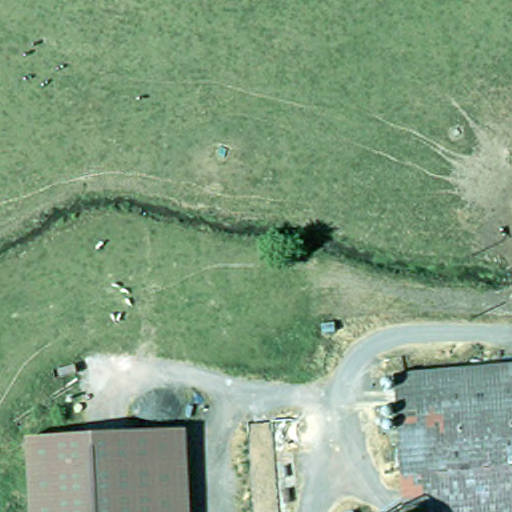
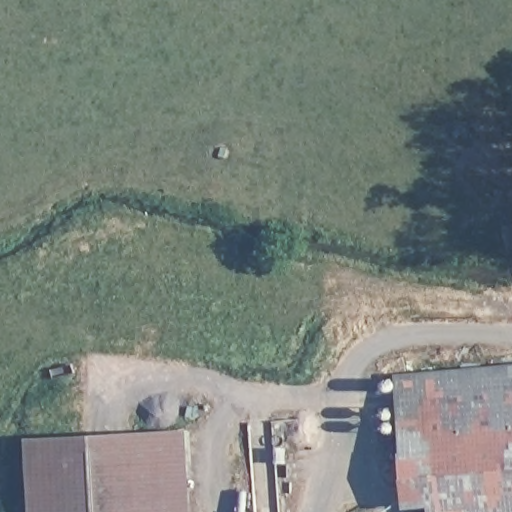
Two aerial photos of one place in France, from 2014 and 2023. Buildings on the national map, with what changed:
unchanged [(422,420),(402,421),(400,371),(512,365),(512,512),(428,512),(427,499),(423,445),(422,420)]
unchanged [(402,500),(402,457),(402,421),(422,420),(423,445),(427,499),(402,500)]
unchanged [(36,512),(45,423),(134,431),(202,437),(195,512),(36,512)]

